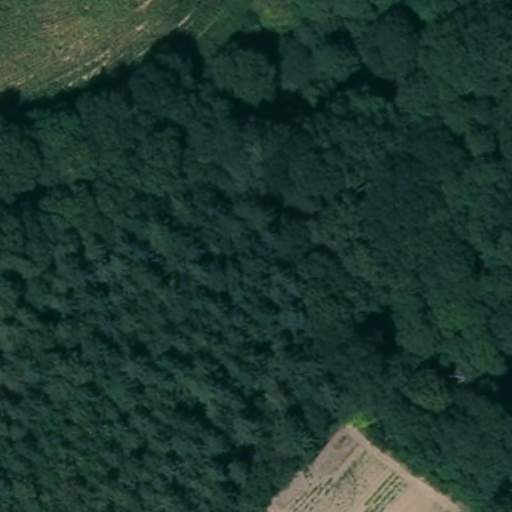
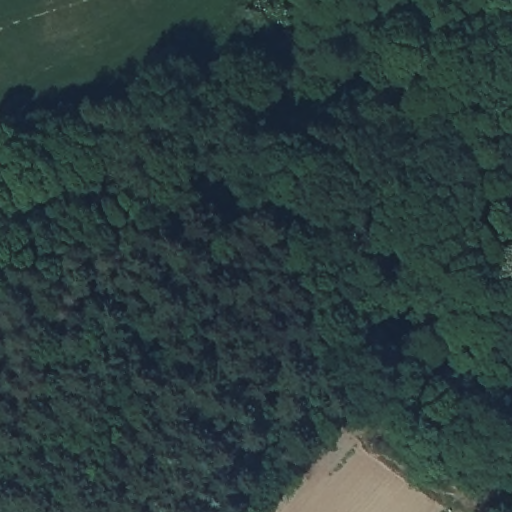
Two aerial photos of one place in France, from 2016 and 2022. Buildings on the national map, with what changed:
[]

